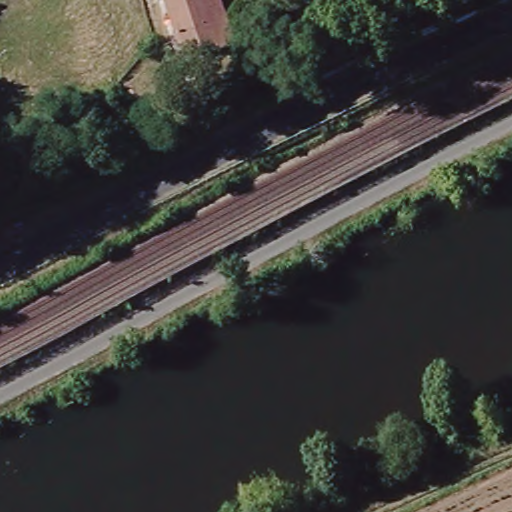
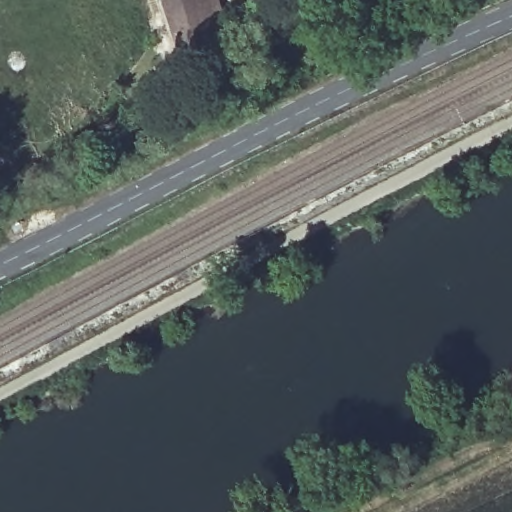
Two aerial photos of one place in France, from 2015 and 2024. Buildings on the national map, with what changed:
unchanged [(211,46),(210,40),(179,51),(162,0),(214,0),(227,41),(211,46)]

